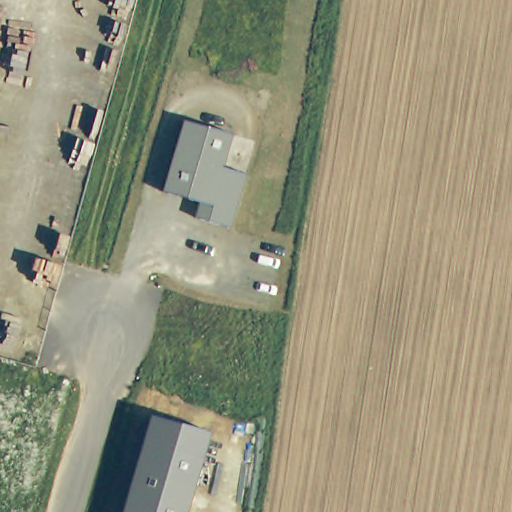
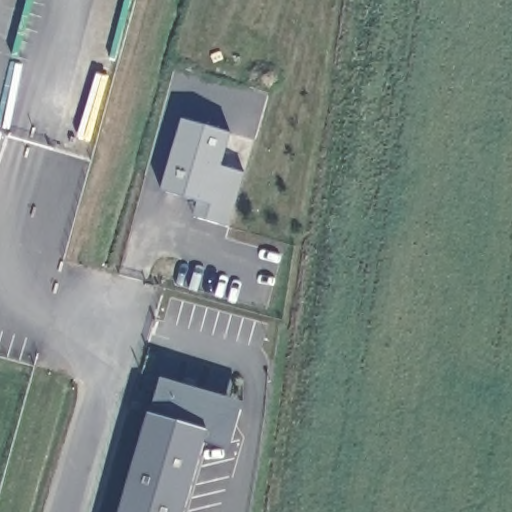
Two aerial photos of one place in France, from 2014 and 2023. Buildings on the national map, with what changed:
unchanged [(192,198),(155,187),(176,115),(224,129),(214,162),(238,169),(222,224),(192,215),(187,214),(192,198)]
new [(0,137),(0,132),(1,132),(0,137)]
new [(215,431),(155,414),(162,378),(244,402),(230,449),(211,443),(215,431)]
unchanged [(215,431),(191,512),(127,512),(155,414),(215,431)]

